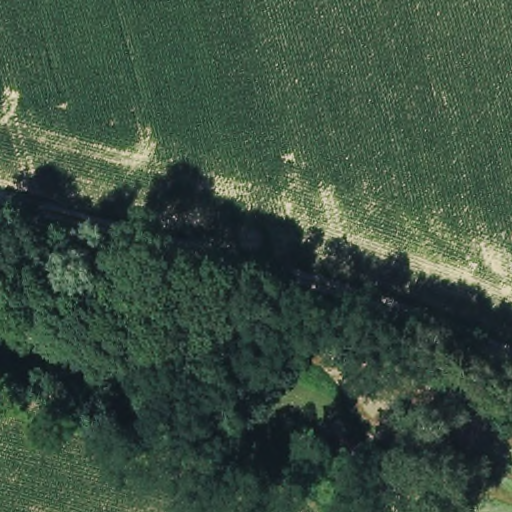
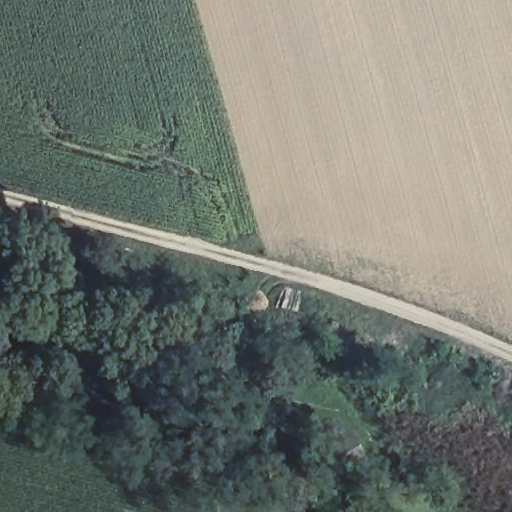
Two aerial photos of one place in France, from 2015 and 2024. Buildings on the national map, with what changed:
unchanged [(337,443),(351,465),(336,475),(321,452),(337,443)]

